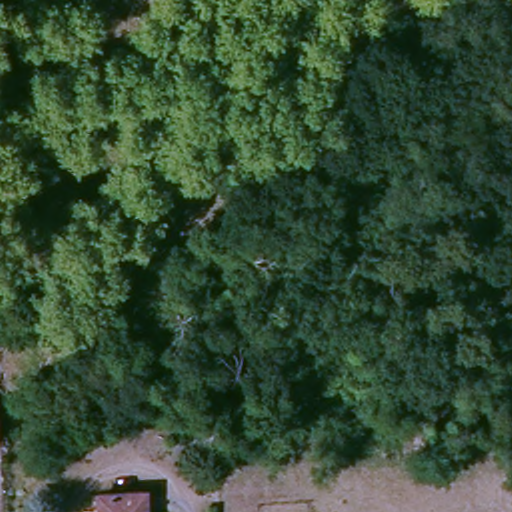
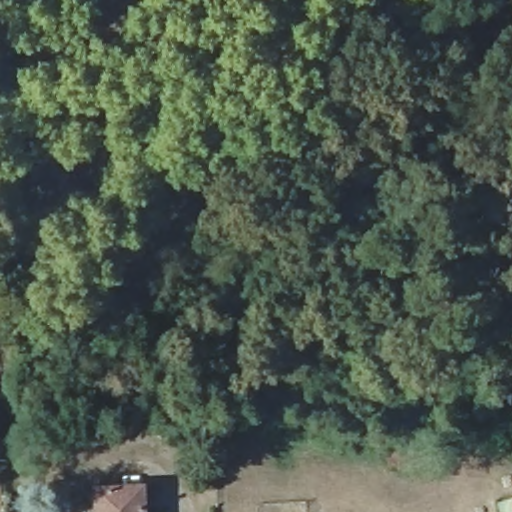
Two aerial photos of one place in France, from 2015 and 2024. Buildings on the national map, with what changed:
unchanged [(143,512),(98,512),(102,488),(146,495),(143,512)]

